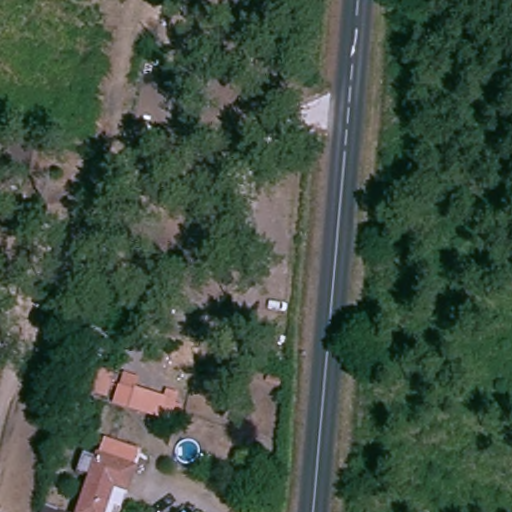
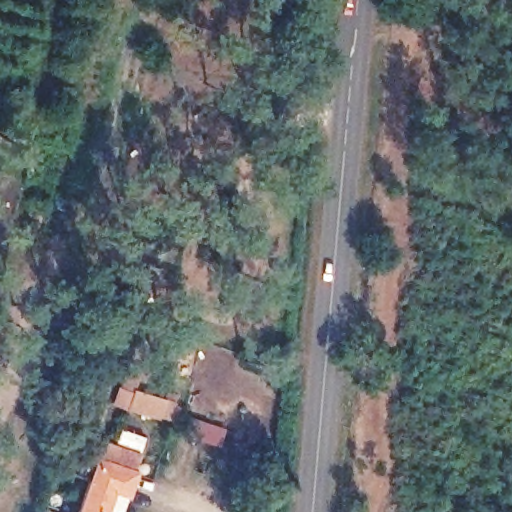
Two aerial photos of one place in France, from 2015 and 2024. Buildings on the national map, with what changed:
unchanged [(82,390),(88,365),(114,373),(107,398),(82,390)]
unchanged [(138,377),(135,387),(163,396),(164,387),(176,392),(173,403),(182,406),(176,424),(112,405),(122,372),(138,377)]
unchanged [(103,440),(141,453),(127,496),(112,490),(104,512),(78,512),(103,440)]

